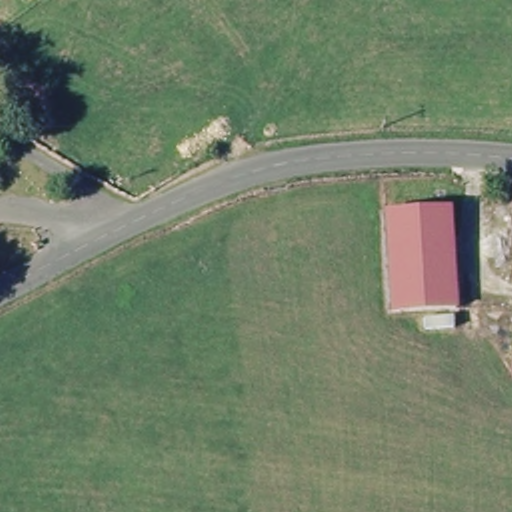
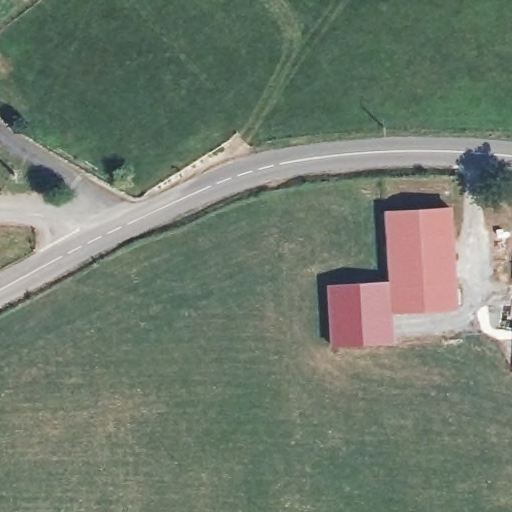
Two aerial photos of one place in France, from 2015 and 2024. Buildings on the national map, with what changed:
unchanged [(451,208),(460,312),(397,316),(388,214),(451,208)]
new [(397,316),(392,316),(394,344),(329,347),(326,286),(389,282),(386,214),(388,214),(397,316)]

